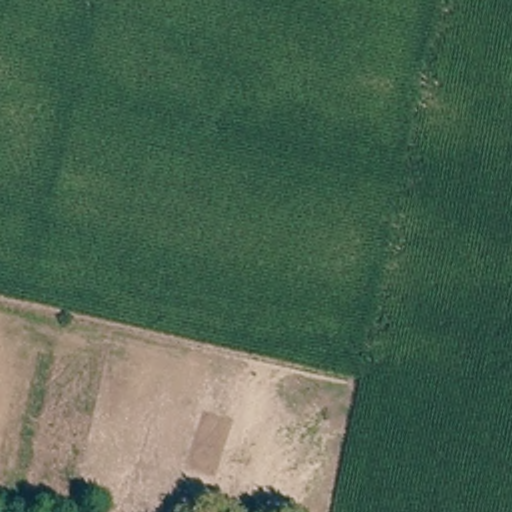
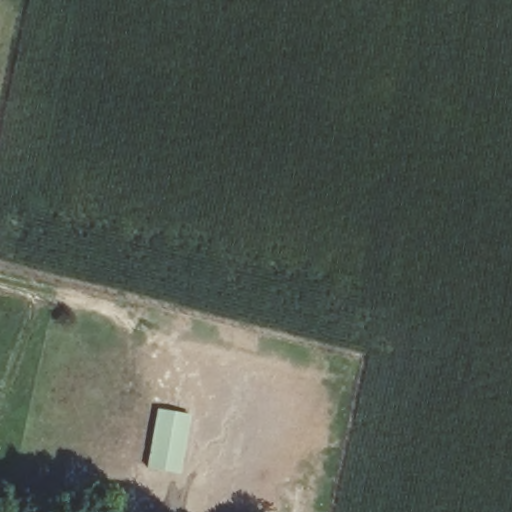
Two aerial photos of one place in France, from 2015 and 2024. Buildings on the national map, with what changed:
new [(182,473),(148,467),(156,408),(190,413),(182,473)]

